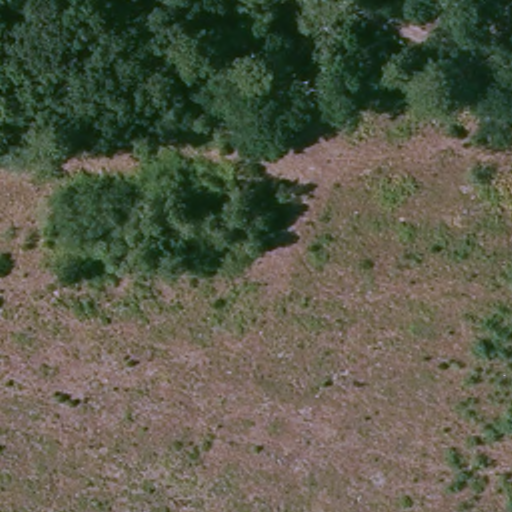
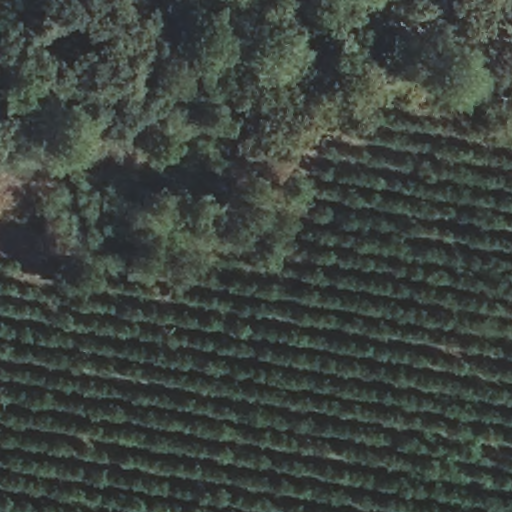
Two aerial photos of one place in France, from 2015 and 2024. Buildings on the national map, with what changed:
unchanged [(194,99),(160,96),(159,44),(193,43),(194,99)]

